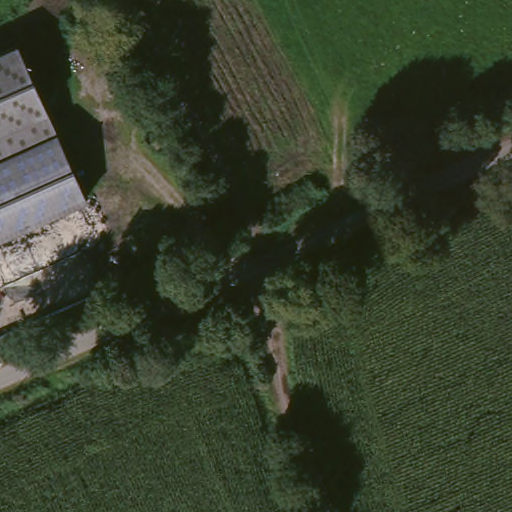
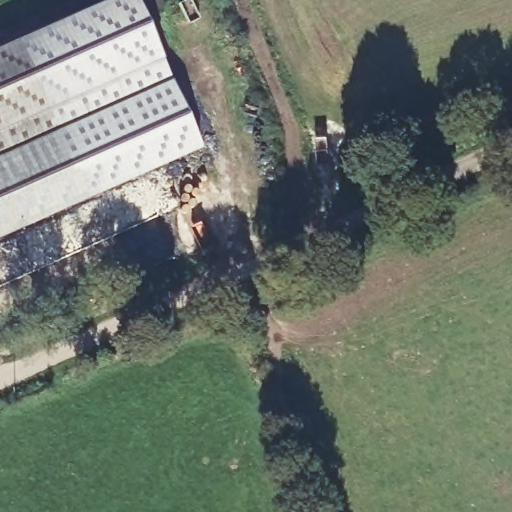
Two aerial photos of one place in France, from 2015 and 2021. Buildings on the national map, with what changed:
new [(117,0),(133,0),(201,152),(86,202),(56,139),(66,135),(27,42),(117,0)]
unchanged [(27,42),(66,135),(56,139),(41,145),(0,162),(0,53),(6,51),(27,42)]
unchanged [(56,139),(86,202),(0,240),(0,162),(41,145),(56,139)]

